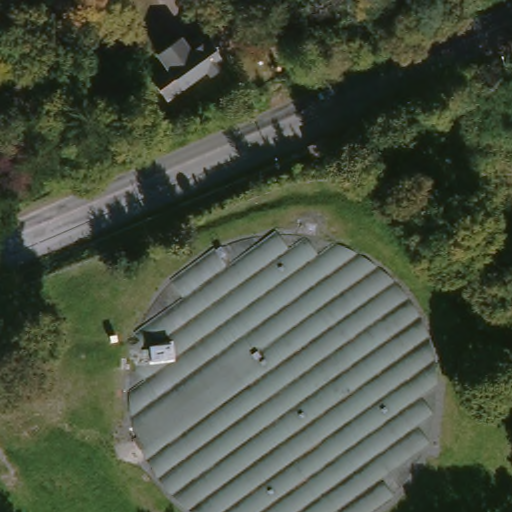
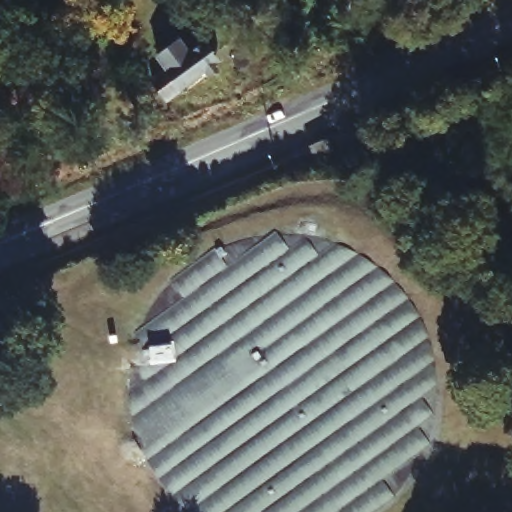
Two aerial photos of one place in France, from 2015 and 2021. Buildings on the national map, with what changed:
unchanged [(148,75),(163,64),(153,50),(174,34),(180,42),(195,31),(200,38),(209,50),(215,58),(210,61),(163,95),(148,75)]
unchanged [(327,147),(327,155),(318,155),(319,147),(327,147)]

